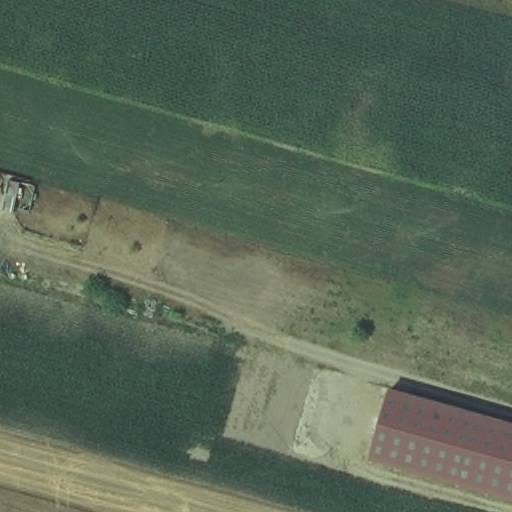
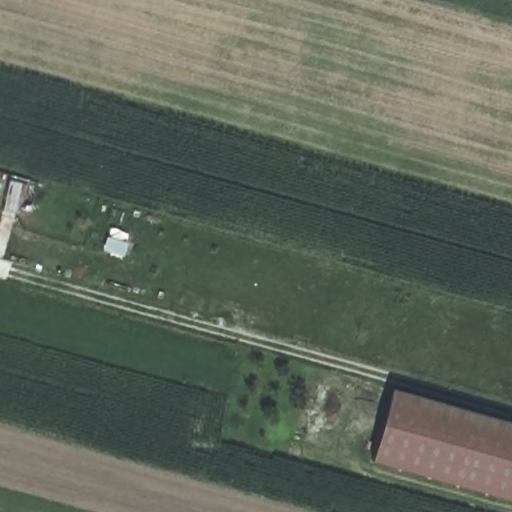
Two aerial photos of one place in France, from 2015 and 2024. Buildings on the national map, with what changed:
unchanged [(370,461),(392,389),(512,423),(512,501),(370,461)]

